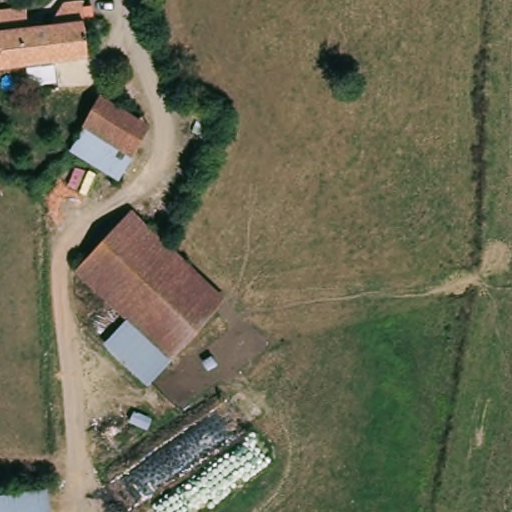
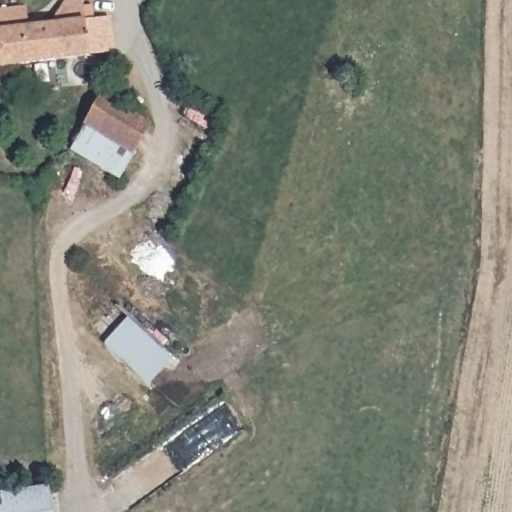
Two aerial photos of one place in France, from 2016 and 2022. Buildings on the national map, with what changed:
unchanged [(32,25),(57,22),(57,17),(65,0),(84,0),(92,55),(0,68),(0,10),(29,6),(32,25)]
unchanged [(100,100),(154,127),(141,153),(87,126),(100,100)]
unchanged [(141,153),(129,175),(119,170),(116,178),(73,154),(87,126),(141,153)]
demolished [(141,214),(226,300),(172,358),(120,305),(86,267),(141,214)]
unchanged [(149,383),(96,328),(120,305),(172,358),(149,383)]
unchanged [(52,512),(0,512),(0,494),(49,488),(52,512)]

